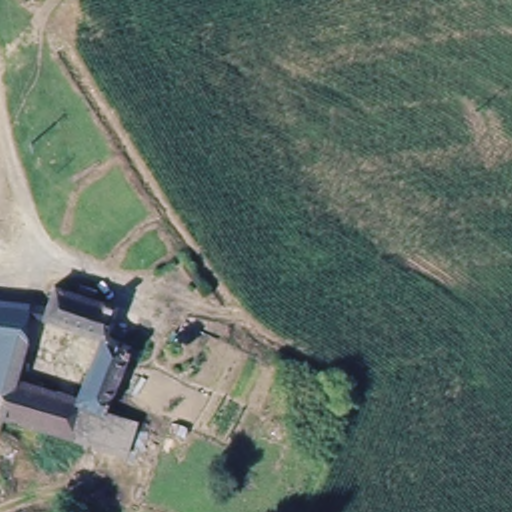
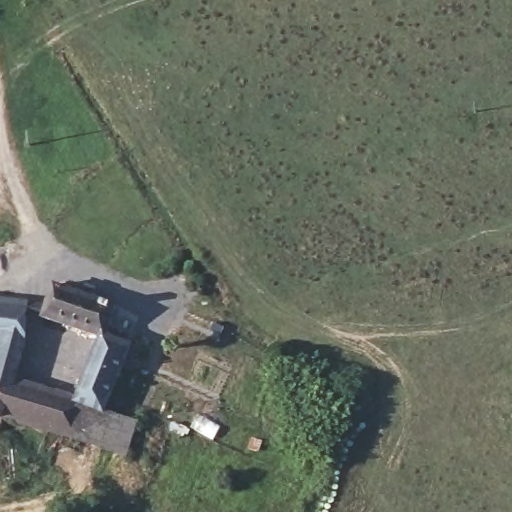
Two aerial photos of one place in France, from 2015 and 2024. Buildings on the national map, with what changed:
unchanged [(45,323),(55,291),(75,298),(80,284),(95,288),(90,302),(116,311),(105,342),(45,323)]
unchanged [(16,384),(79,406),(105,342),(129,352),(102,420),(90,416),(81,444),(0,421),(0,306),(32,310),(16,384)]
unchanged [(90,416),(102,420),(140,436),(129,465),(81,444),(90,416)]

